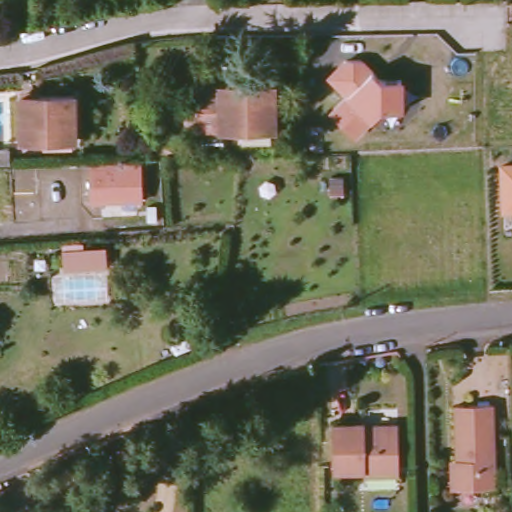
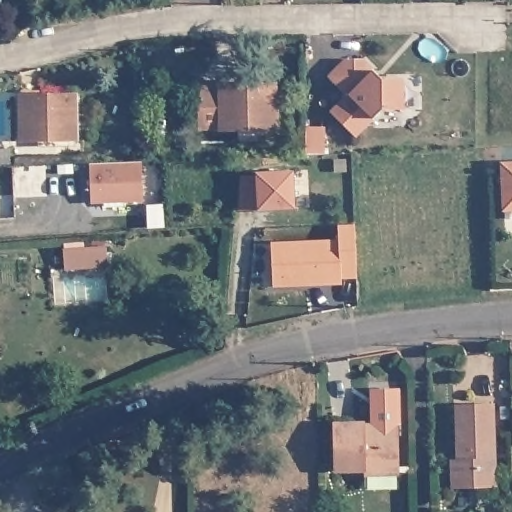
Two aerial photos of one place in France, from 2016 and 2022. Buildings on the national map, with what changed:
unchanged [(362,57),(385,81),(404,81),(404,111),(382,110),(373,121),(354,139),(328,114),(344,97),(325,77),(345,56),(362,57)]
unchanged [(272,135),(204,137),(203,126),(200,96),(271,94),(272,124),(272,135)]
unchanged [(22,142),(22,126),(23,98),(75,98),(75,125),(76,142),(22,142)]
unchanged [(140,160),(142,198),(92,199),(90,161),(140,160)]
unchanged [(503,164),(512,164),(512,213),(504,213),(503,164)]
new [(272,245),(338,242),(338,226),(353,226),(355,276),(340,277),(340,283),(273,287),(272,245)]
unchanged [(84,241),(85,247),(106,247),(107,268),(63,270),(62,241),(84,241)]
unchanged [(495,406),(497,490),(455,492),(455,471),(460,472),(458,406),(495,406)]
unchanged [(370,476),(370,469),(337,469),(337,426),(368,426),(368,430),(376,430),(377,426),(402,427),(403,468),(403,476),(370,476)]

